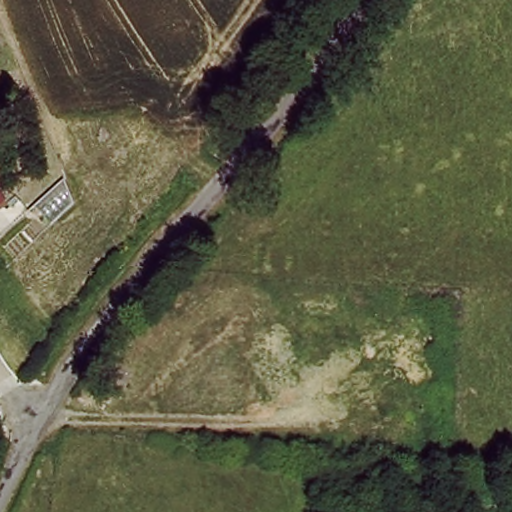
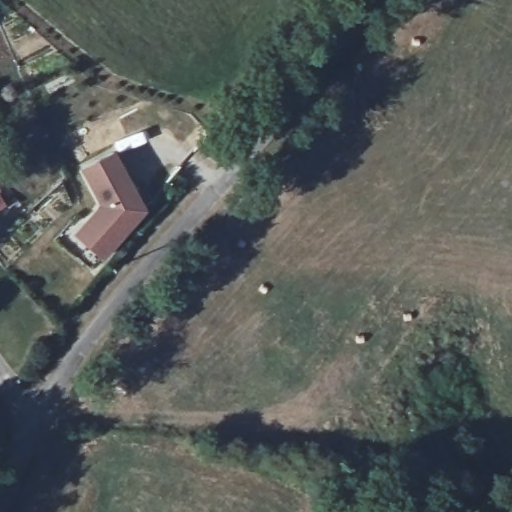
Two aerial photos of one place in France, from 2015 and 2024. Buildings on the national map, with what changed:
new [(99,205),(80,170),(114,150),(147,210),(103,260),(73,235),(99,205)]
new [(4,206),(0,209),(0,200),(4,206)]

